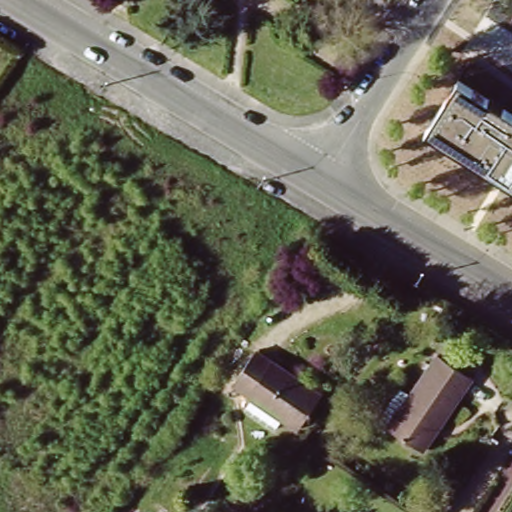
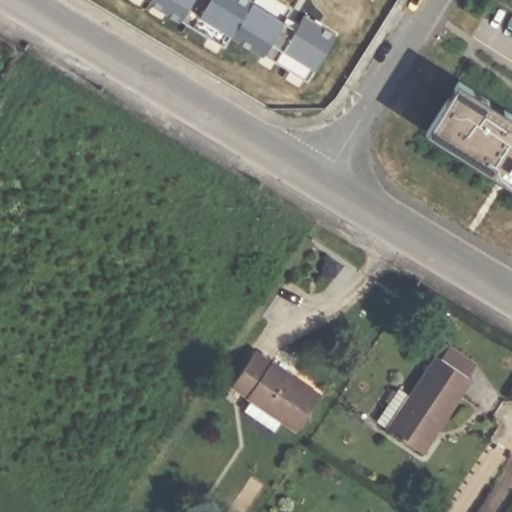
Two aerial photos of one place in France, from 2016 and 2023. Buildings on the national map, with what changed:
new [(254,1),(255,0),(279,0),(293,9),(284,24),(297,31),(305,16),(337,36),(310,82),(236,37),(228,49),(149,0),(252,0),(254,1)]
unchanged [(426,132),(458,81),(512,115),(512,186),(426,132)]
unchanged [(280,415),(272,425),(242,405),(250,395),(234,384),(256,350),(320,392),(297,426),(280,415)]
unchanged [(473,367),(465,380),(468,382),(420,454),(373,422),(395,390),(408,398),(435,359),(440,363),(448,350),(473,367)]

